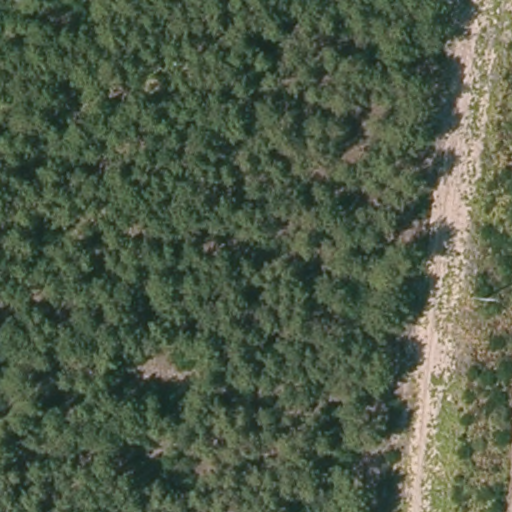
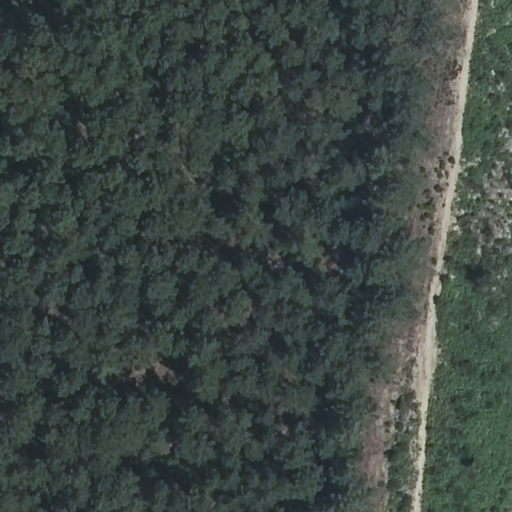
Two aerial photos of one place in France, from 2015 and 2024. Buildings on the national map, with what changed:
[]

